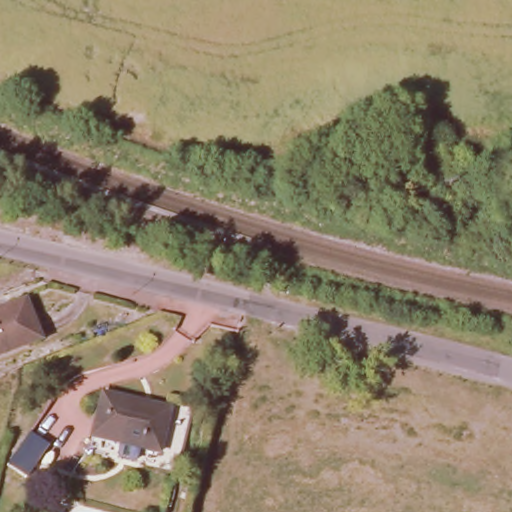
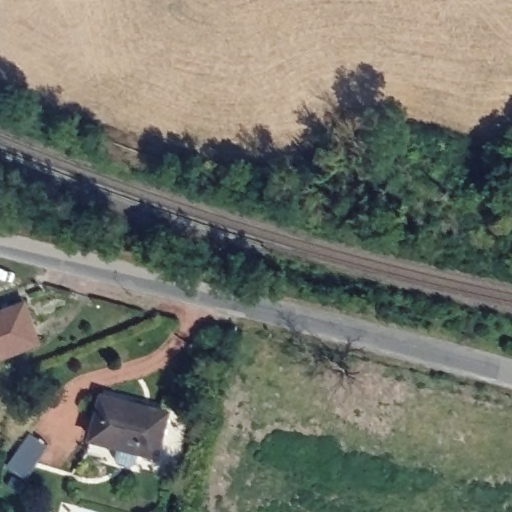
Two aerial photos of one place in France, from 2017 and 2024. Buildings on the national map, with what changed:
unchanged [(42,341),(0,358),(0,314),(28,303),(42,341)]
unchanged [(163,450),(87,431),(96,389),(173,408),(163,450)]

